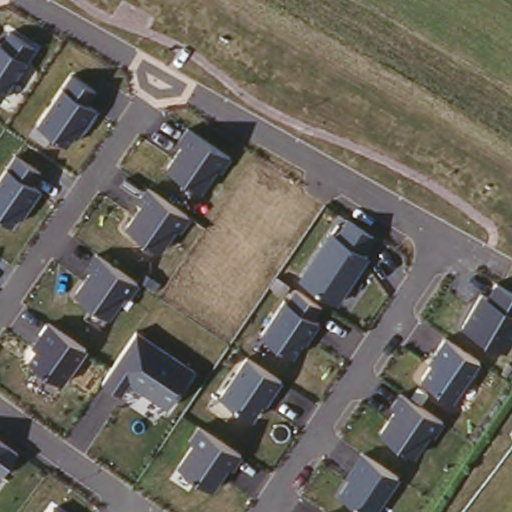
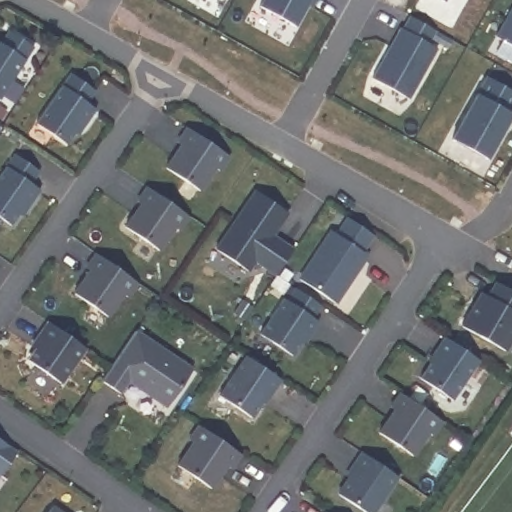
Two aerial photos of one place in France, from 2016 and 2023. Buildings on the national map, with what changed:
new [(265,5),(268,0),(313,0),(299,24),(265,5)]
new [(442,30),(434,42),(442,48),(414,96),(378,77),(406,27),(408,29),(416,15),(442,30)]
new [(502,36),(512,18),(512,42),(502,36)]
unchanged [(0,99),(0,98),(0,41),(2,42),(10,28),(36,44),(0,99)]
unchanged [(98,89),(89,102),(95,107),(70,143),(38,124),(72,71),(98,89)]
new [(512,89),(512,123),(492,157),(458,139),(492,77),(512,89)]
unchanged [(232,155),(219,174),(216,171),(202,192),(166,167),(183,142),(177,139),(186,125),(232,155)]
unchanged [(34,183),(41,187),(13,227),(0,218),(0,174),(16,152),(43,170),(34,183)]
unchanged [(192,216),(180,231),(174,228),(159,249),(124,225),(141,202),(135,197),(144,183),(192,216)]
new [(291,215),(273,239),(279,244),(280,242),(294,252),(279,275),(258,260),(249,271),(219,249),(258,193),(291,215)]
unchanged [(376,235),(367,249),(371,252),(338,301),(299,275),(329,227),(335,231),(347,215),(376,235)]
unchanged [(140,283),(129,299),(123,295),(106,316),(74,292),(91,268),(86,264),(96,250),(140,283)]
unchanged [(512,288),(512,340),(505,350),(459,323),(481,289),(489,293),(497,280),(512,288)]
unchanged [(323,304),(317,315),(322,319),(294,357),(259,334),(284,295),(289,298),(297,286),(323,304)]
unchanged [(89,348),(60,383),(28,360),(36,347),(29,343),(48,320),(89,348)]
unchanged [(195,369),(169,405),(130,378),(119,395),(99,380),(136,328),(195,369)]
unchanged [(481,360),(454,400),(417,377),(446,335),(481,360)]
unchanged [(283,380),(254,420),(219,395),(245,354),(283,380)]
unchanged [(444,420),(434,436),(429,434),(414,454),(379,431),(396,407),(389,402),(399,388),(444,420)]
unchanged [(244,455),(232,469),(225,466),(211,487),(179,465),(195,442),(188,436),(199,421),(244,455)]
unchanged [(0,478),(0,437),(20,451),(0,478)]
unchanged [(400,475),(375,512),(368,512),(334,491),(362,450),(400,475)]
unchanged [(63,512),(49,512),(54,506),(63,512)]
unchanged [(329,512),(326,512),(327,510),(329,512)]

